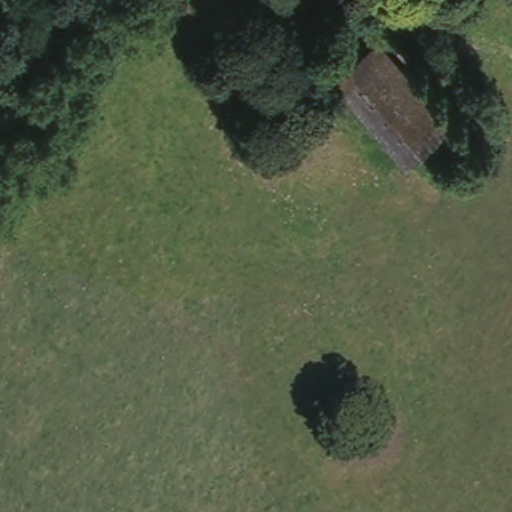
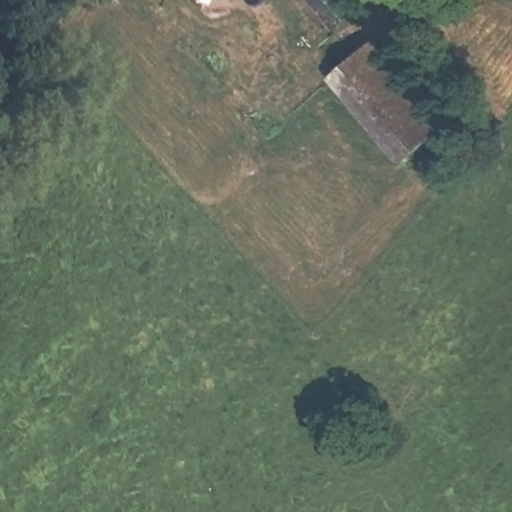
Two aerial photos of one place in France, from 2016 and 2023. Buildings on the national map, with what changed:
unchanged [(327,35),(307,0),(342,0),(351,15),(327,35)]
unchanged [(332,85),(378,48),(433,123),(395,154),(332,85)]

